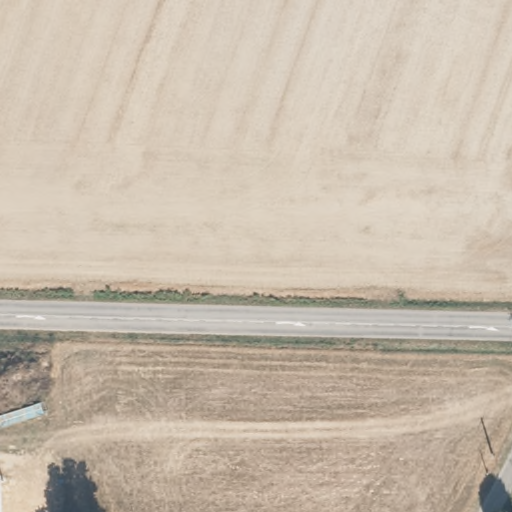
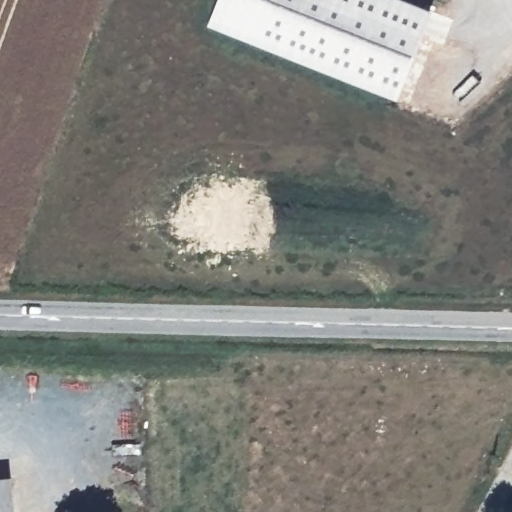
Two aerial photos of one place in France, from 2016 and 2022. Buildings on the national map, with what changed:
new [(397,100),(207,26),(216,0),(407,0),(432,10),(397,100)]
unchanged [(7,512),(0,512),(0,478),(5,478),(7,512)]

